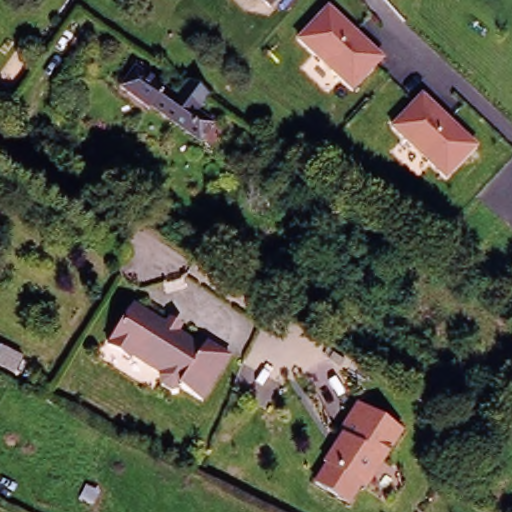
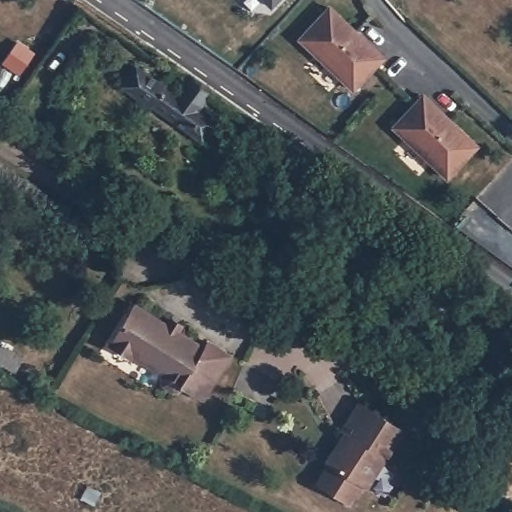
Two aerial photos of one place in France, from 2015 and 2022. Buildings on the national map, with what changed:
unchanged [(271,14),(257,0),(283,0),(271,14)]
unchanged [(386,58),(354,91),(298,41),(328,7),(386,58)]
unchanged [(205,143),(194,135),(146,100),(144,102),(115,82),(129,63),(171,93),(183,77),(201,90),(189,106),(206,119),(218,127),(205,143)]
unchanged [(482,147),(445,185),(389,130),(424,94),(482,147)]
unchanged [(158,210),(196,235),(188,249),(149,223),(158,210)]
unchanged [(173,320),(182,326),(178,332),(203,350),(208,343),(231,359),(201,401),(181,387),(178,390),(171,392),(162,385),(161,378),(163,375),(133,355),(131,358),(110,345),(136,305),(168,326),(173,320)]
unchanged [(359,488),(358,487),(346,506),(311,485),(324,465),(323,465),(333,448),(340,449),(346,440),(336,435),(355,405),(399,433),(379,463),(362,490),(359,488)]

